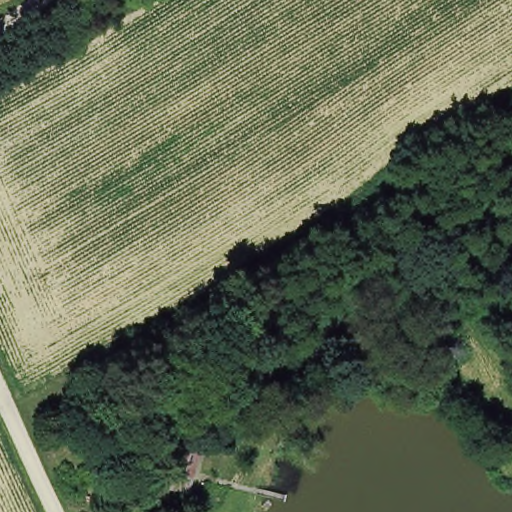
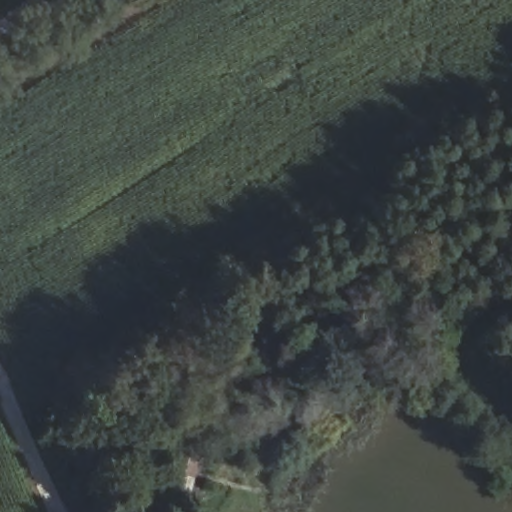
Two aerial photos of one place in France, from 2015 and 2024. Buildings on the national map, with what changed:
unchanged [(181,418),(211,426),(197,479),(172,474),(181,418)]

